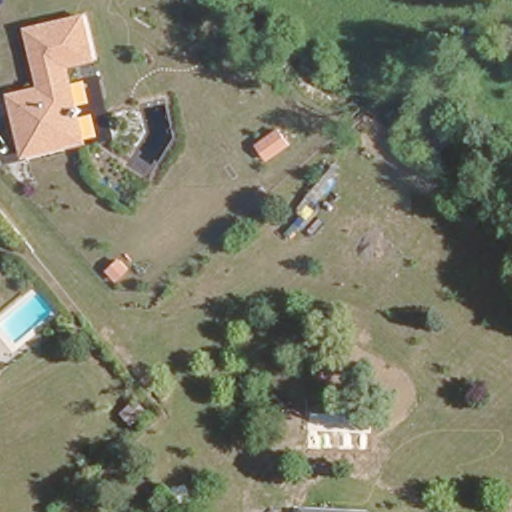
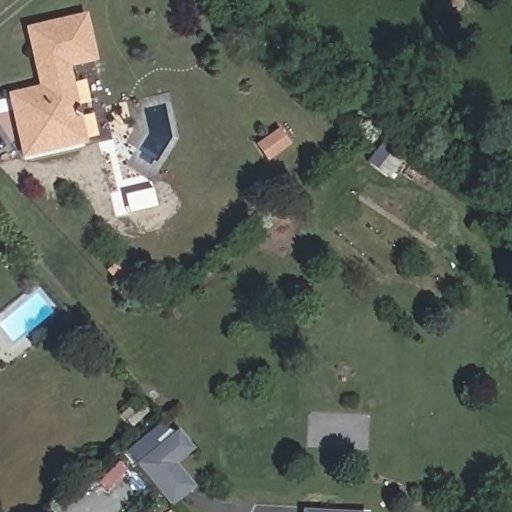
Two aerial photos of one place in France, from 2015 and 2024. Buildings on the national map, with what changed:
unchanged [(16,159),(2,95),(31,87),(19,25),(80,10),(95,63),(67,69),(77,139),(16,159)]
unchanged [(249,141),(268,129),(278,144),(282,150),(264,163),(259,158),(249,141)]
unchanged [(139,401),(146,408),(150,412),(134,427),(129,421),(123,415),(139,401)]
new [(175,464),(193,486),(169,507),(134,462),(126,451),(156,425),(173,432),(177,428),(193,449),(175,464)]
unchanged [(303,509),(349,512),(303,512),(303,509)]

